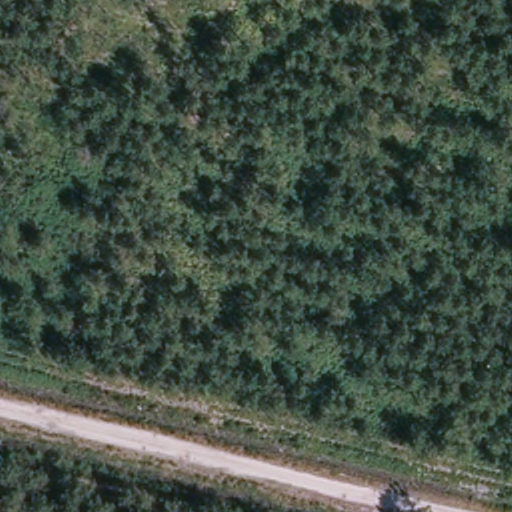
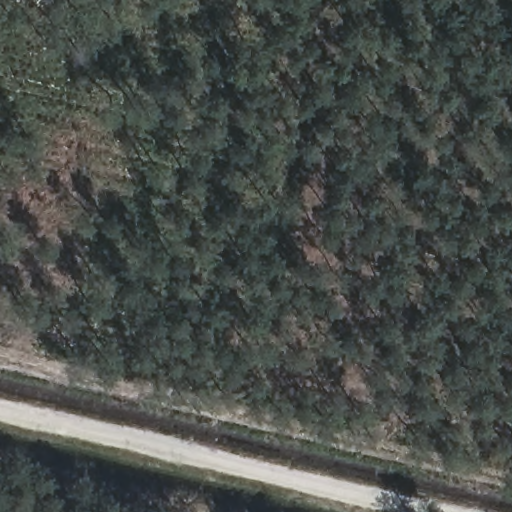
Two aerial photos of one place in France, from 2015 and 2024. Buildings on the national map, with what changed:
[]

